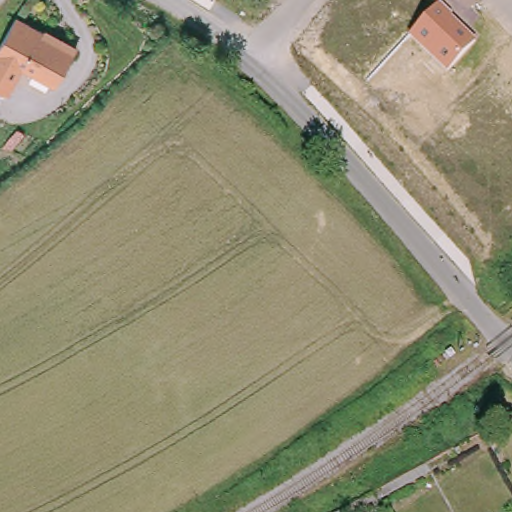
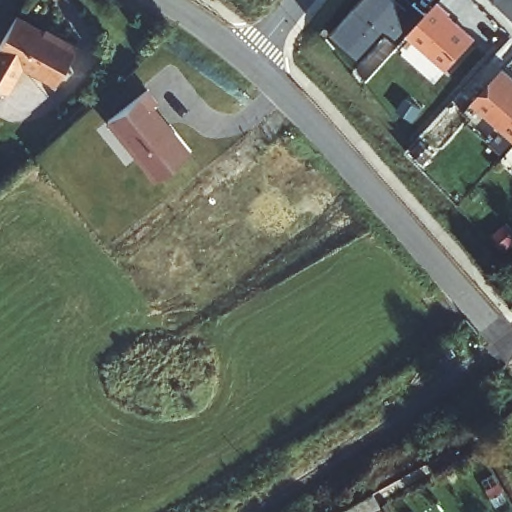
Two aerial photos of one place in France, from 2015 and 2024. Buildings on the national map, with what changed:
new [(385,33),(360,61),(328,33),(357,0),(398,0),(407,8),(411,2),(424,14),(397,44),(385,33)]
unchanged [(475,41),(447,72),(409,36),(439,3),(453,15),(452,16),(475,41)]
unchanged [(23,64),(9,90),(0,85),(0,43),(17,13),(77,47),(57,82),(23,64)]
new [(149,84),(160,100),(153,102),(192,151),(152,181),(107,116),(149,84)]
new [(505,86),(512,92),(512,149),(477,118),(505,86)]
unchanged [(382,490),(387,500),(365,512),(342,512),(382,490)]

